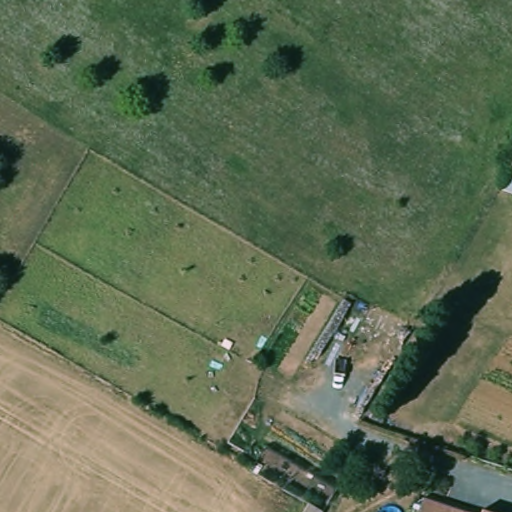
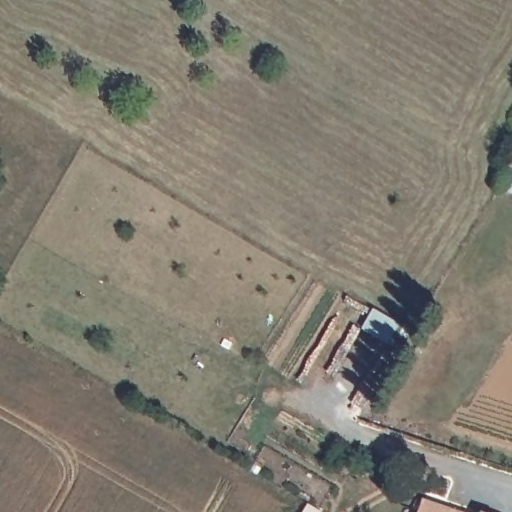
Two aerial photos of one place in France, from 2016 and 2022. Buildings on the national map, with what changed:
unchanged [(503,189),(512,171),(512,192),(503,189)]
unchanged [(481,511),(483,505),(501,512),(419,512),(425,492),(481,511)]
unchanged [(321,510),(320,512),(304,512),(309,504),(321,510)]

